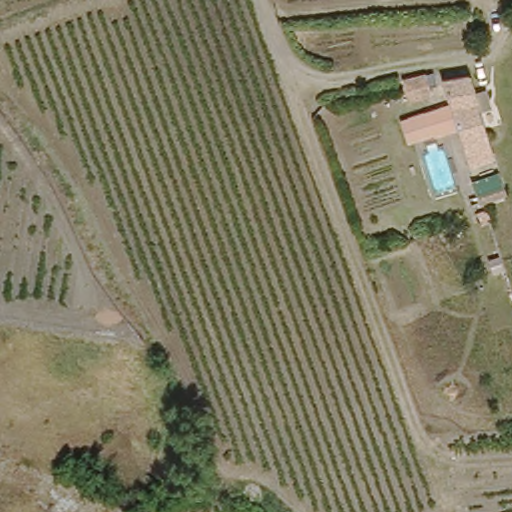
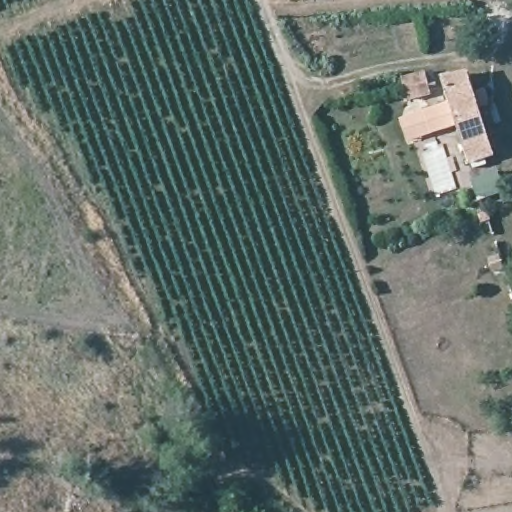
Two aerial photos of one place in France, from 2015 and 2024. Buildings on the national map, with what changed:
unchanged [(433,79),(425,81),(429,95),(407,102),(399,76),(429,66),(433,79)]
unchanged [(475,163),(464,130),(440,139),(433,119),(457,111),(448,85),(474,75),(479,87),(494,82),(500,100),(485,105),(502,154),(475,163)]
unchanged [(344,119),(342,100),(368,96),(370,113),(344,119)]

